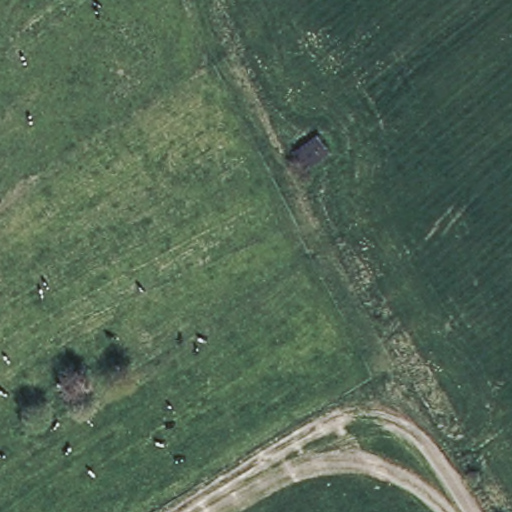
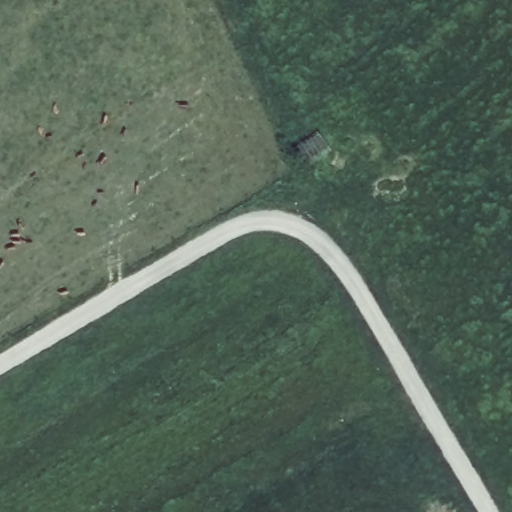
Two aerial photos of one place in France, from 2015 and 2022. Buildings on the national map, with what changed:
unchanged [(292,146),(321,128),(334,149),(307,166),(292,146)]

